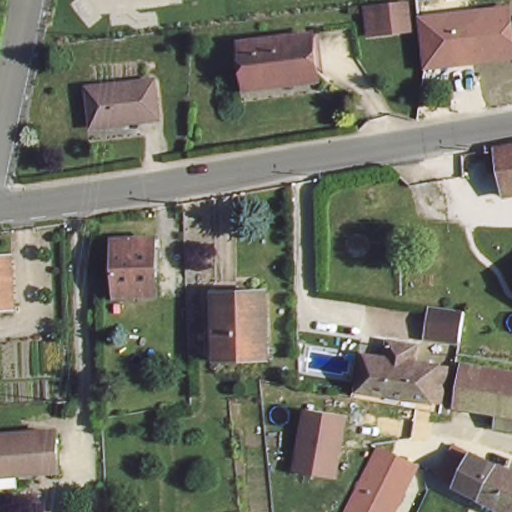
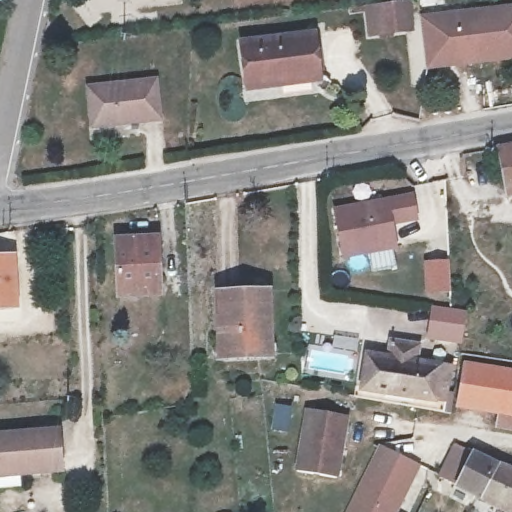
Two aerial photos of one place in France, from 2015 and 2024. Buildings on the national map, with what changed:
unchanged [(410,0),(413,29),(384,32),(380,4),(410,0)]
unchanged [(419,17),(510,5),(512,14),(512,60),(425,70),(419,17)]
unchanged [(317,75),(270,80),(270,90),(245,91),(241,48),(313,39),(317,75)]
unchanged [(161,118),(95,125),(89,89),(156,82),(161,118)]
unchanged [(502,143),(512,141),(512,189),(510,189),(502,143)]
new [(393,226),(398,250),(342,260),(333,208),(414,192),(419,220),(393,226)]
unchanged [(161,291),(122,293),(119,238),(160,235),(161,291)]
unchanged [(14,305),(0,306),(0,256),(12,256),(14,305)]
unchanged [(274,352),(224,352),(222,291),(272,290),(274,352)]
unchanged [(452,308),(464,310),(460,339),(430,335),(435,306),(452,308)]
unchanged [(370,380),(375,380),(381,348),(403,351),(405,335),(430,340),(427,356),(455,361),(449,394),(447,404),(368,390),(370,380)]
unchanged [(502,426),(505,411),(460,403),(467,363),(512,370),(512,428),(502,426)]
unchanged [(346,413),(336,476),(296,470),(306,407),(346,413)]
unchanged [(65,468),(23,472),(23,484),(0,486),(0,433),(62,428),(65,468)]
unchanged [(442,475),(460,442),(498,462),(512,468),(512,489),(502,505),(442,475)]
unchanged [(381,450),(416,468),(394,512),(349,512),(380,450),(381,450)]
unchanged [(512,489),(512,510),(502,505),(512,489)]

